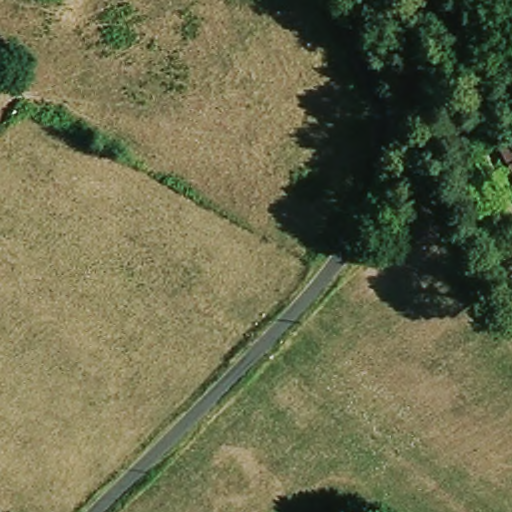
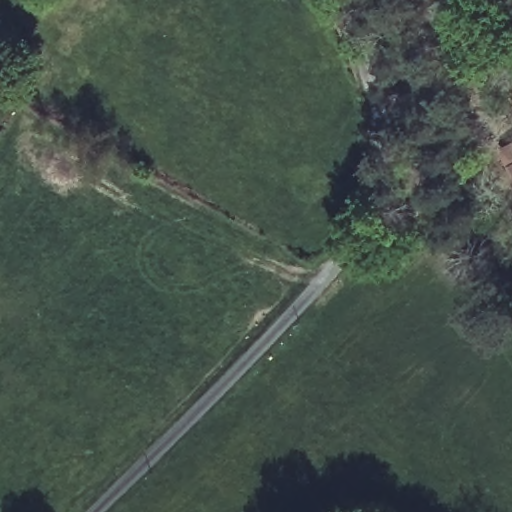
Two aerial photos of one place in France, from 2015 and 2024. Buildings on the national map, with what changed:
unchanged [(496,145),(512,135),(512,173),(496,145)]

